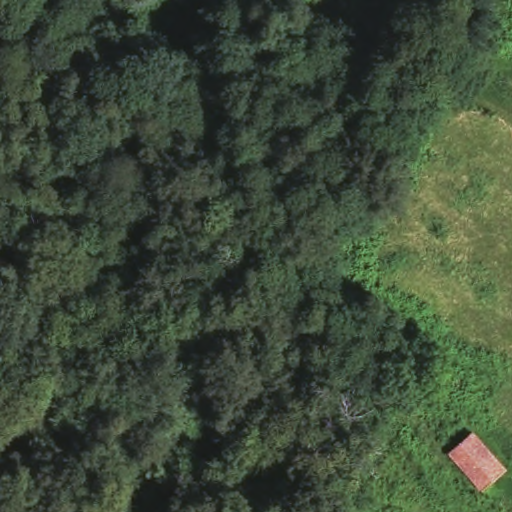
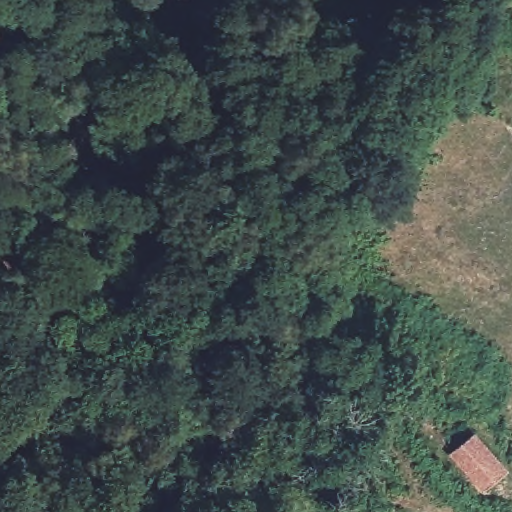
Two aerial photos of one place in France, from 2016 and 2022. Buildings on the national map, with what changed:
unchanged [(512,468),(512,469),(481,492),(450,450),(480,427),(496,448),(512,468)]

